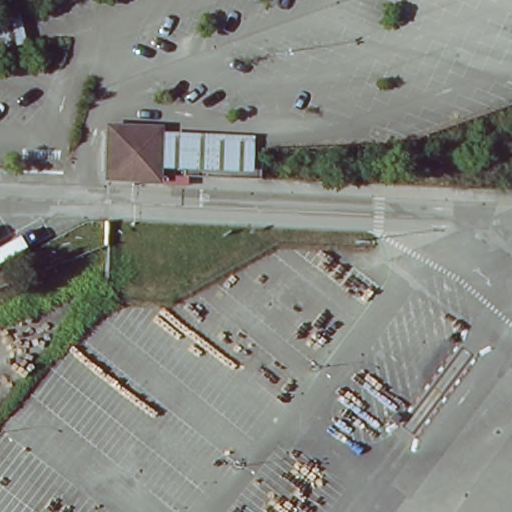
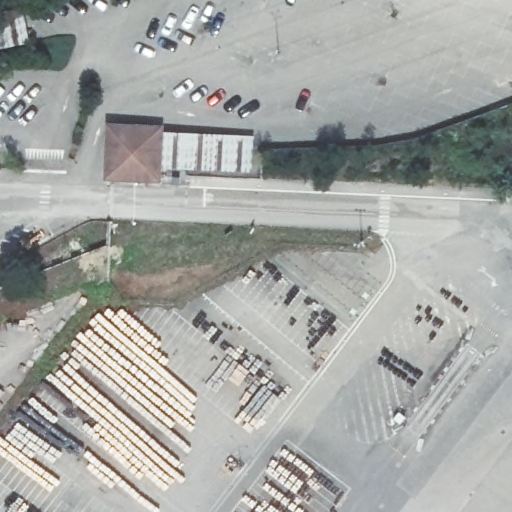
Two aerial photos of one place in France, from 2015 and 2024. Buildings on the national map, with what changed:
unchanged [(30,40),(0,47),(0,10),(23,5),(30,40)]
unchanged [(162,166),(162,180),(106,179),(108,120),(164,122),(164,130),(162,166)]
unchanged [(164,130),(255,133),(252,169),(162,166),(164,130)]

